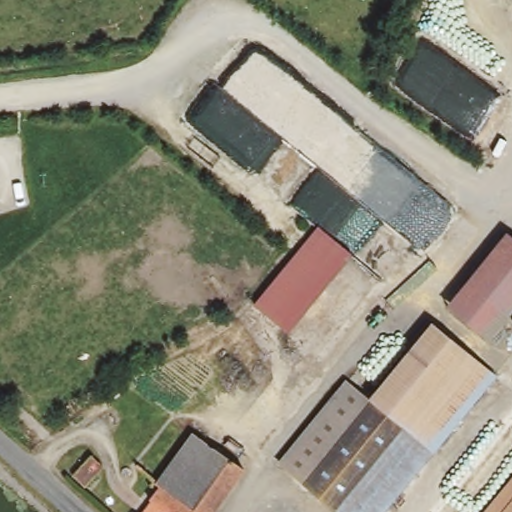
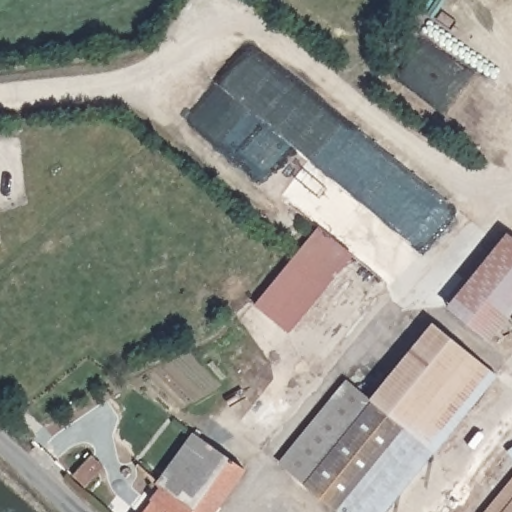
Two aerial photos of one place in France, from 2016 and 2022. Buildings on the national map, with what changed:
unchanged [(255,306),(318,228),(348,253),(285,331),(255,306)]
unchanged [(512,247),(512,309),(483,346),(441,312),(500,238),(512,247)]
unchanged [(512,321),(512,322),(511,322),(512,321)]
unchanged [(431,326),(496,375),(384,512),(340,512),(335,508),(402,426),(370,400),(431,326)]
unchanged [(370,400),(402,426),(335,508),(280,463),(346,381),(370,400)]
unchanged [(160,487),(155,483),(193,433),(244,469),(214,512),(197,512),(160,487)]
unchanged [(85,462),(91,456),(103,467),(97,474),(85,487),(73,475),(74,475),(85,462)]
unchanged [(512,478),(512,512),(484,512),(512,478)]
unchanged [(150,500),(160,487),(197,512),(140,512),(150,500)]

